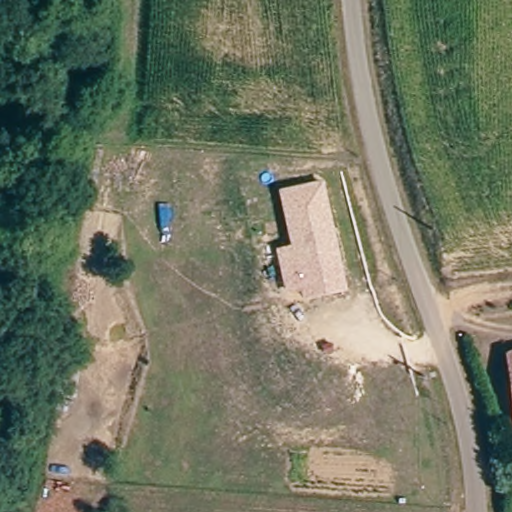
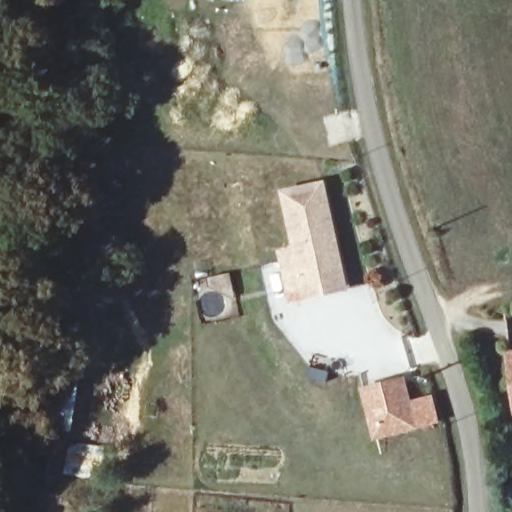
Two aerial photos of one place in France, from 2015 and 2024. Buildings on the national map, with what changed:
unchanged [(278,191),(323,180),(350,291),(303,301),(300,290),(287,293),(277,249),(292,246),(278,191)]
unchanged [(512,352),(512,370),(510,352),(512,352)]
new [(419,429),(373,439),(360,387),(405,376),(419,429)]

